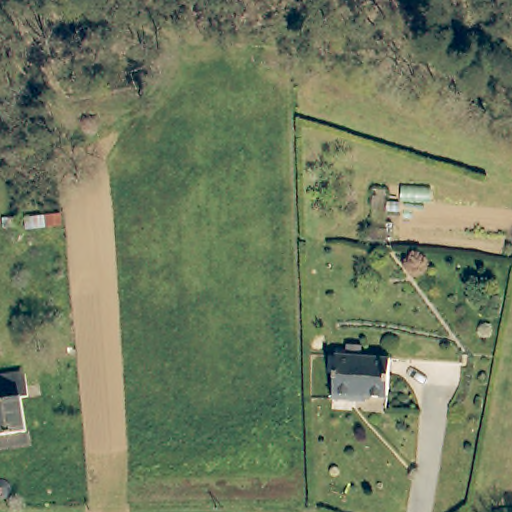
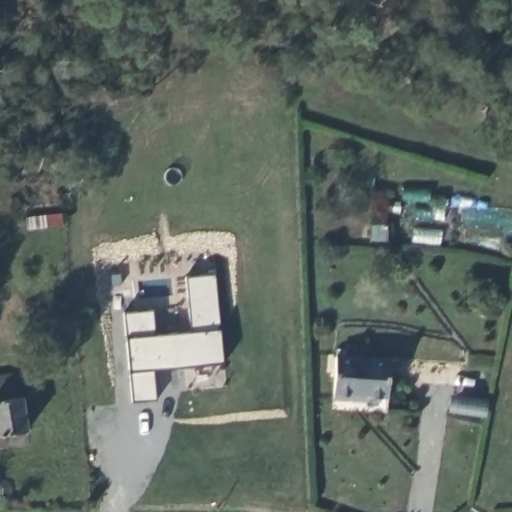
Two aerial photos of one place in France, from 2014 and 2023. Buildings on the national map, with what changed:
new [(152,371),(156,400),(131,404),(121,313),(151,310),(155,334),(187,332),(182,277),(213,273),(222,363),(152,371)]
unchanged [(338,349),(389,351),(387,405),(356,404),(357,395),(337,394),(338,349)]
unchanged [(25,397),(29,431),(0,435),(0,379),(31,376),(33,389),(34,396),(25,397)]
unchanged [(0,505),(0,488),(4,487),(7,505),(0,505)]

